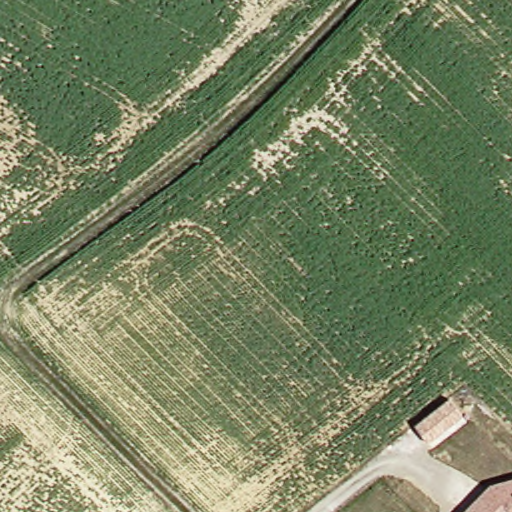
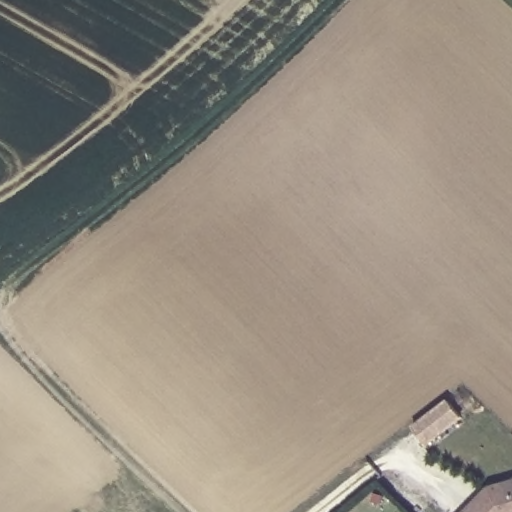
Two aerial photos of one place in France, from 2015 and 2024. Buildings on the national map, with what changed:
unchanged [(491,486),(512,480),(512,512),(465,512),(491,486)]

